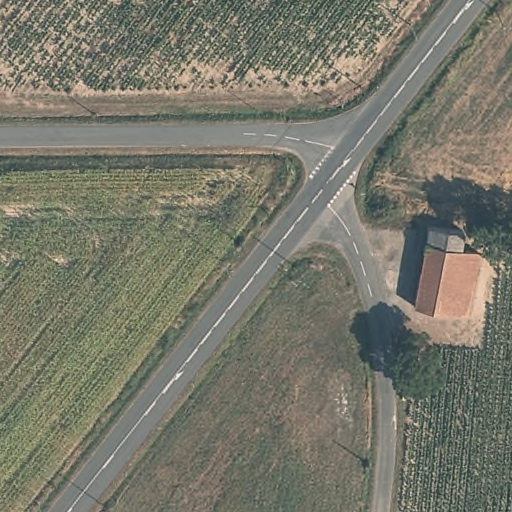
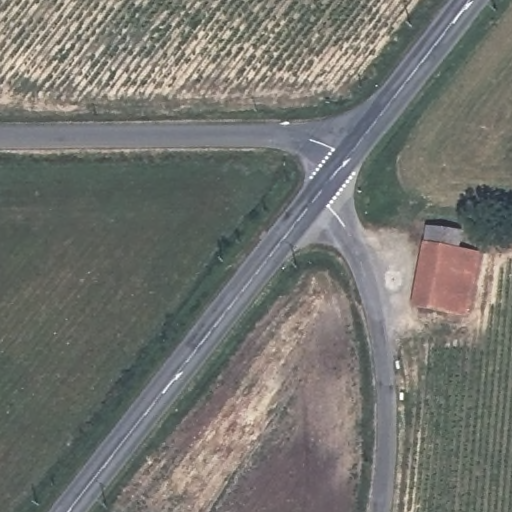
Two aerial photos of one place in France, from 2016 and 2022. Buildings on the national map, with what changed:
unchanged [(468,227),(466,244),(484,247),(473,312),(417,302),(431,221),(468,227)]

